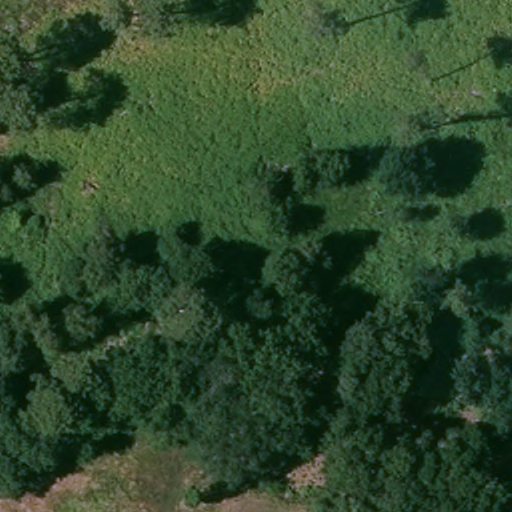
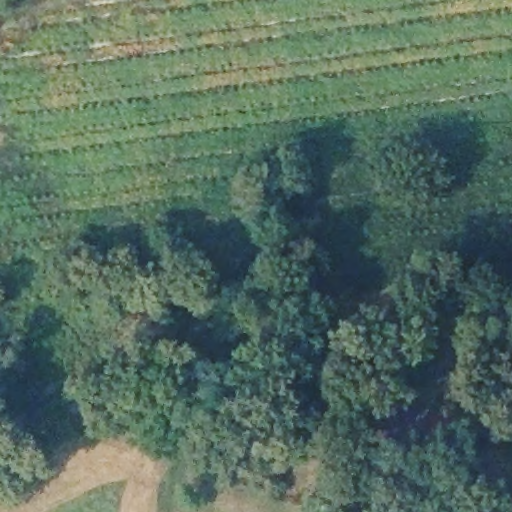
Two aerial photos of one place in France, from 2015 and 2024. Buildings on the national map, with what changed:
[]

